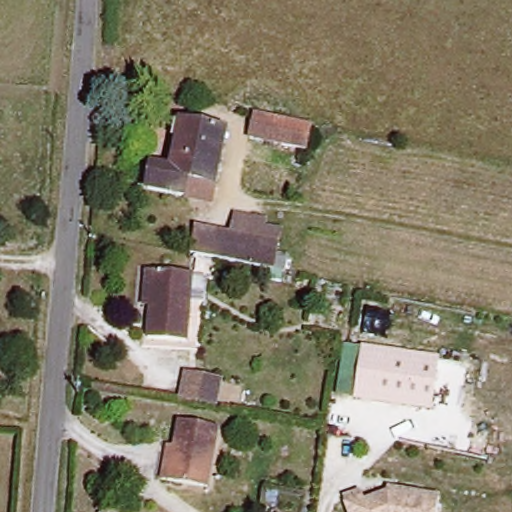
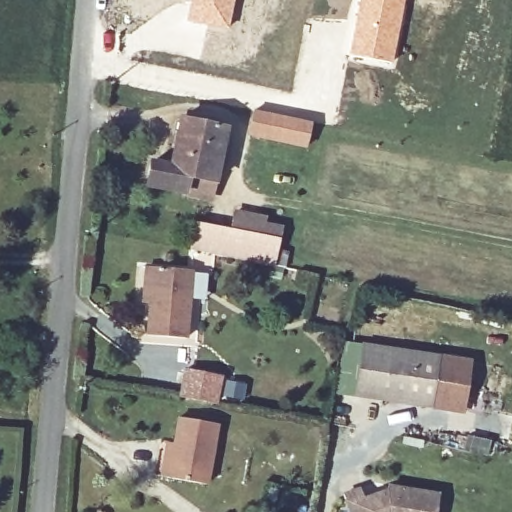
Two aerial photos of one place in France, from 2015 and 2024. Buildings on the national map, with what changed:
new [(189,0),(234,0),(229,29),(185,21),(189,0)]
new [(358,0),(404,0),(392,62),(347,54),(358,0)]
unchanged [(312,147),(255,135),(260,110),(316,122),(312,147)]
unchanged [(188,195),(154,190),(158,171),(171,174),(185,116),(231,127),(219,185),(216,200),(188,195)]
unchanged [(289,267),(272,262),(206,249),(211,223),(251,231),(255,216),(280,221),(277,237),(295,240),(289,267)]
unchanged [(191,338),(153,337),(155,307),(144,306),(147,264),(157,265),(198,267),(191,338)]
unchanged [(439,356),(432,408),(335,395),(342,341),(439,356)]
unchanged [(203,373),(233,378),(229,403),(199,398),(203,373)]
unchanged [(169,440),(181,441),(184,417),(221,422),(214,482),(176,476),(165,474),(169,440)]
unchanged [(361,490),(364,497),(394,488),(438,496),(436,512),(348,512),(344,496),(361,490)]

